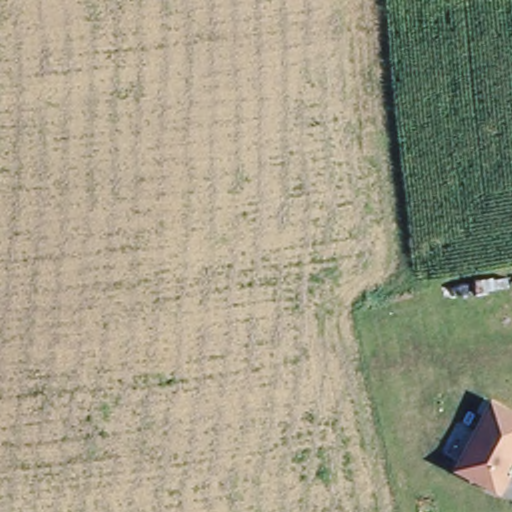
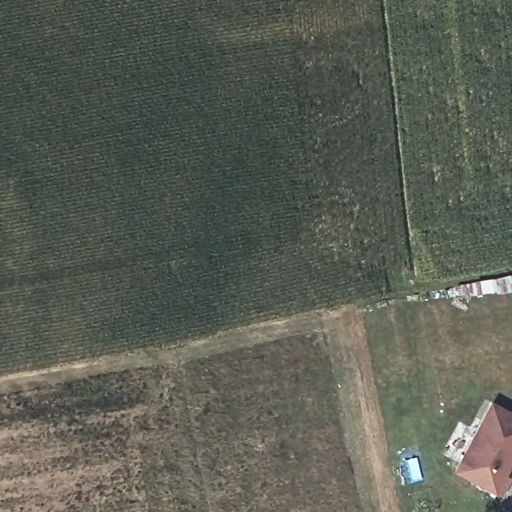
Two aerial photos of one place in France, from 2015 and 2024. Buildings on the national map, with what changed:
unchanged [(512,467),(508,475),(512,477),(512,478),(504,495),(455,470),(491,399),(512,410),(512,467)]

